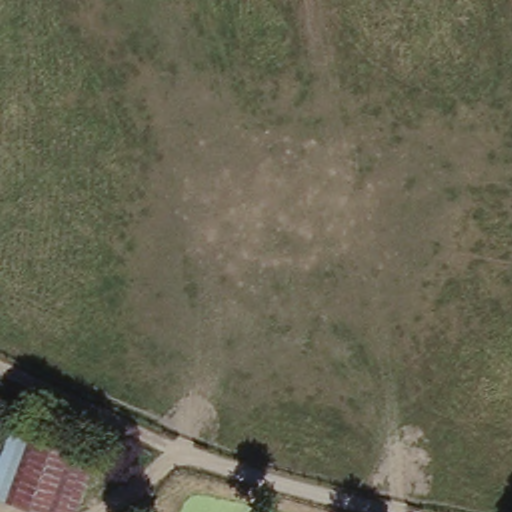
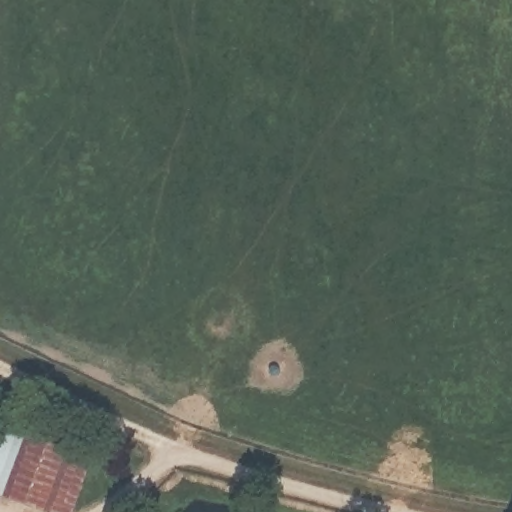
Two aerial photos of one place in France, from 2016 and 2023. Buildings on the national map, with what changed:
unchanged [(78,512),(52,512),(0,494),(0,474),(18,423),(99,452),(78,512)]

